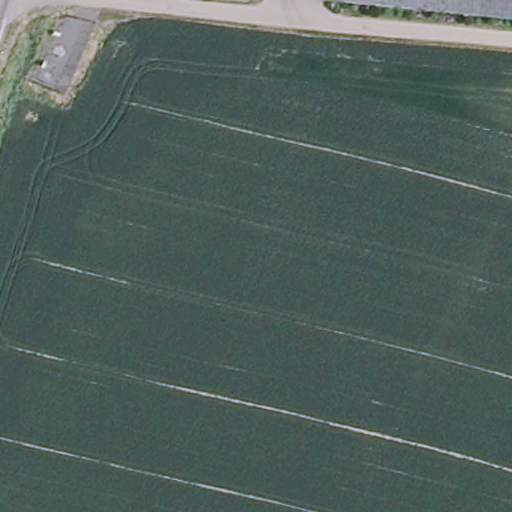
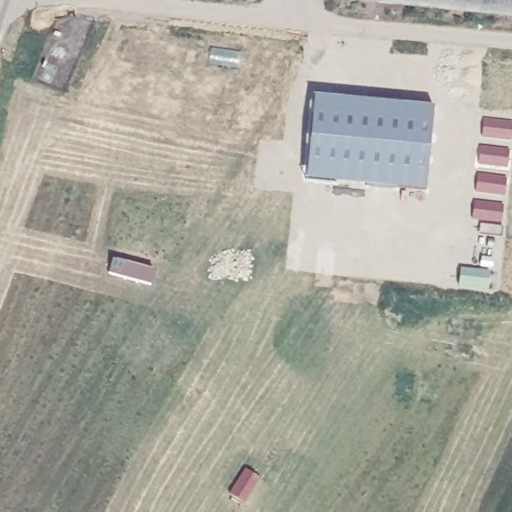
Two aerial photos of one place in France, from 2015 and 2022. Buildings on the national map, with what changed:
unchanged [(376,4),(341,0),(512,0),(512,19),(385,5),(376,4)]
new [(429,190),(306,179),(315,92),(436,104),(429,190)]
new [(482,138),(485,117),(512,121),(512,139),(482,138)]
new [(507,166),(478,164),(480,145),(510,150),(507,166)]
new [(505,195),(475,192),(477,174),(507,176),(505,195)]
new [(502,220),(472,219),(474,201),(504,205),(502,220)]
new [(155,283),(111,272),(115,256),(157,268),(155,283)]
new [(489,289),(460,286),(461,268),(490,270),(489,289)]
new [(246,500),(230,492),(246,468),(260,477),(246,500)]

